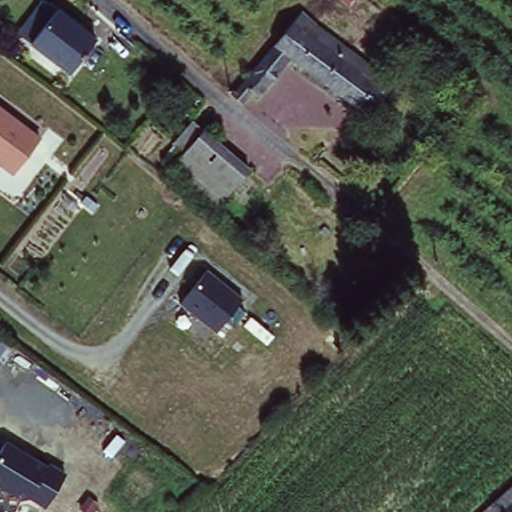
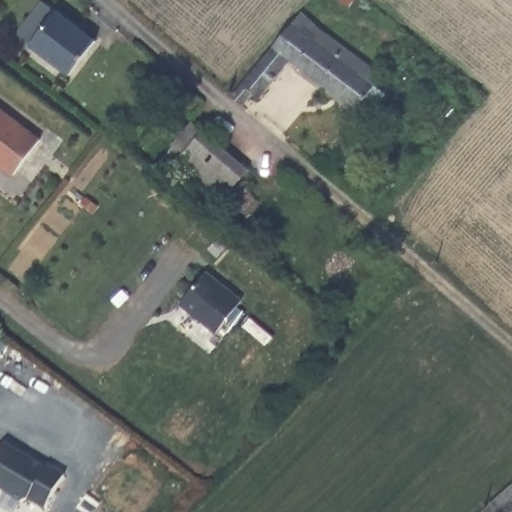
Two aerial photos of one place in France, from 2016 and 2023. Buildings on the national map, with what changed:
unchanged [(69,74),(30,43),(16,32),(41,1),(54,11),(95,41),(69,74)]
unchanged [(362,109),(361,111),(355,106),(296,62),(287,55),(253,94),(245,87),(238,93),(231,87),(296,12),(311,23),(319,28),(344,48),(381,75),(374,84),(388,96),(385,101),(377,113),(369,116),(362,109)]
unchanged [(39,145),(12,178),(0,169),(0,113),(39,145)]
unchanged [(183,148),(174,140),(193,119),(202,127),(248,168),(221,198),(214,207),(168,166),(175,158),(183,148)]
unchanged [(208,272),(242,300),(215,333),(181,305),(208,272)]
unchanged [(8,345),(0,356),(0,339),(8,345)]
unchanged [(6,442),(65,475),(46,507),(30,498),(18,501),(0,488),(0,452),(6,442)]
unchanged [(512,485),(512,512),(494,512),(489,506),(512,485)]

